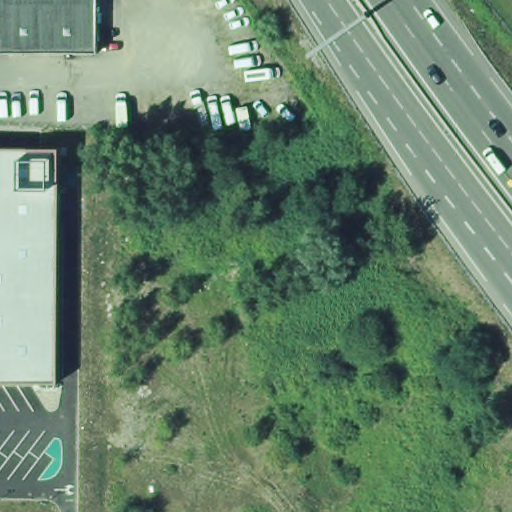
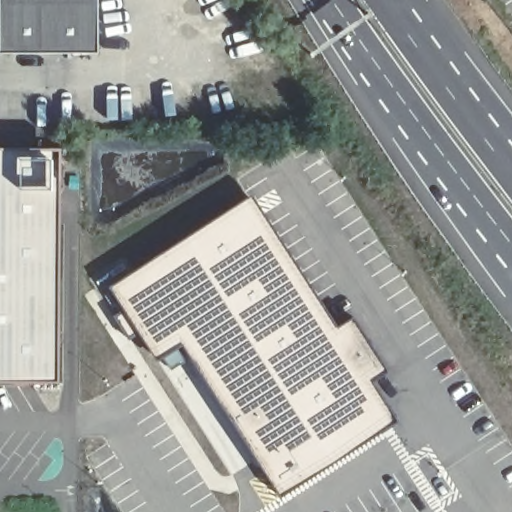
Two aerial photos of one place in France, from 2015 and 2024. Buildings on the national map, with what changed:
unchanged [(0,58),(0,0),(98,0),(97,58),(0,58)]
unchanged [(57,380),(0,381),(0,148),(58,148),(57,380)]
new [(250,194),(335,328),(350,318),(381,369),(366,378),(392,420),(278,497),(178,343),(153,360),(106,287),(250,194)]

